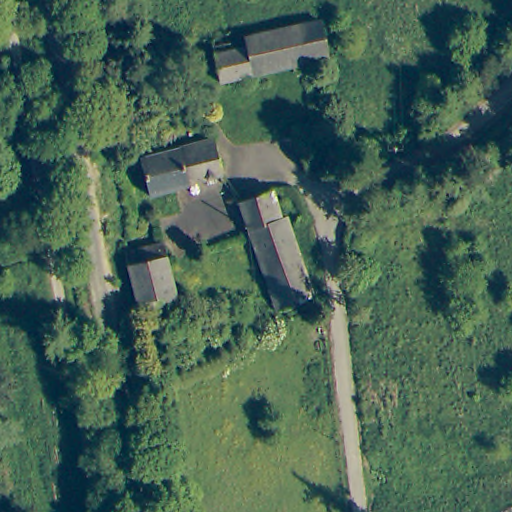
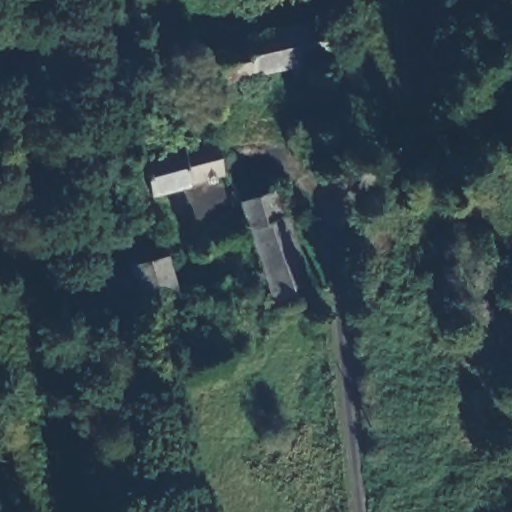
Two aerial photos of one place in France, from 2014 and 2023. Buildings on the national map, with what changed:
unchanged [(328,56),(221,81),(214,54),(210,39),(244,32),(320,19),(327,50),(328,56)]
unchanged [(218,134),(227,170),(154,189),(145,152),(218,134)]
unchanged [(331,143),(331,148),(341,148),(343,163),(332,164),(332,169),(307,171),(305,146),(331,143)]
unchanged [(260,262),(239,201),(272,190),(281,217),(286,215),(314,295),(277,311),(260,262)]
unchanged [(167,237),(184,301),(146,311),(130,246),(167,237)]

